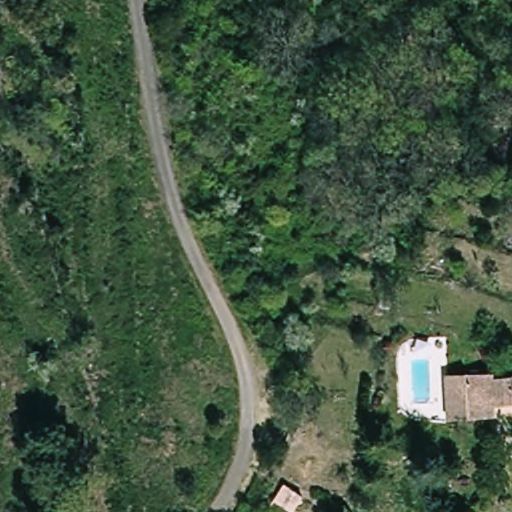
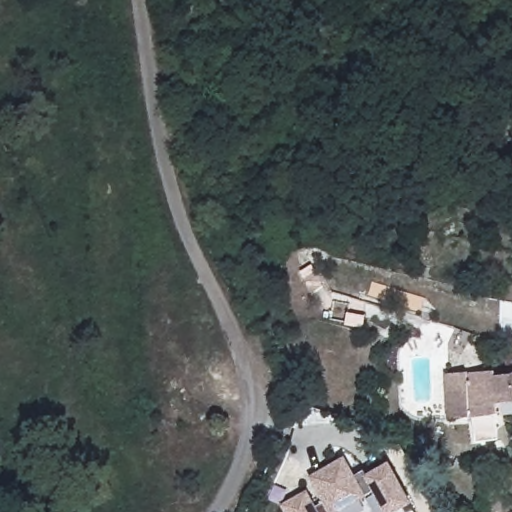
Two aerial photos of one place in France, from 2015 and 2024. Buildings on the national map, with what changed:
unchanged [(445,375),(462,374),(496,372),(496,377),(512,376),(512,404),(497,406),(499,416),(470,419),(466,419),(447,420),(445,375)]
new [(326,506),(312,481),(346,463),(355,480),(365,475),(368,480),(390,467),(412,507),(403,512),(385,512),(376,495),(344,512),(285,512),(284,510),(308,496),(316,511),(326,506)]

